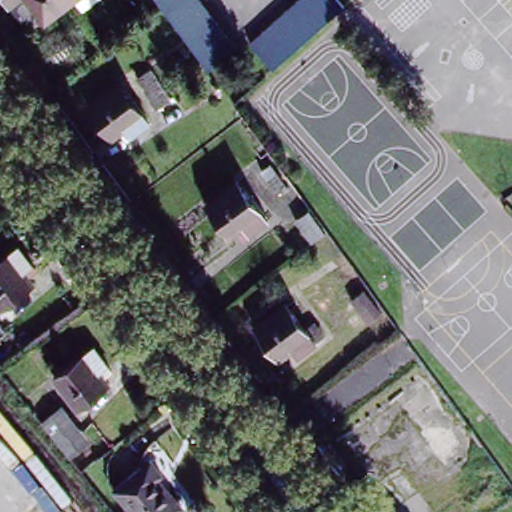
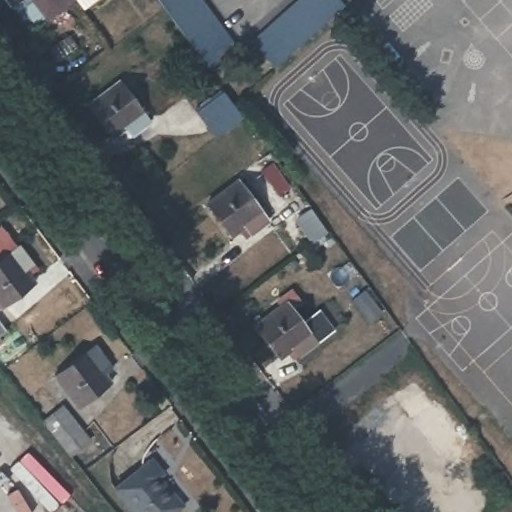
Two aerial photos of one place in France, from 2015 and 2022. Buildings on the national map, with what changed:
unchanged [(12,3),(10,0),(66,0),(49,13),(32,27),(12,3)]
unchanged [(86,7),(80,0),(94,0),(86,7)]
unchanged [(237,46),(209,69),(157,0),(202,0),(237,46)]
unchanged [(343,8),(275,69),(251,43),(298,0),(337,0),(343,8)]
unchanged [(80,49),(57,64),(48,50),(71,35),(80,49)]
unchanged [(172,100),(158,109),(140,79),(154,71),(172,100)]
unchanged [(152,125),(127,143),(121,134),(114,139),(90,107),(122,84),(152,125)]
unchanged [(280,204),(263,181),(275,171),(292,195),(280,204)]
unchanged [(266,219),(241,237),(235,228),(227,234),(205,202),(236,178),(267,219),(266,219)]
unchanged [(311,218),(324,236),(311,246),(297,228),(311,218)]
unchanged [(5,304),(0,298),(0,260),(21,246),(37,268),(29,274),(35,282),(5,304)]
unchanged [(385,315),(372,325),(354,301),(367,291),(385,315)]
unchanged [(296,353),(290,345),(274,357),(251,326),(282,302),(303,330),(309,325),(317,336),(296,353)]
unchanged [(7,328),(0,334),(0,318),(7,328)]
unchanged [(54,373),(93,345),(110,369),(102,375),(107,382),(77,404),(54,373)]
unchanged [(86,449),(73,460),(66,451),(65,450),(43,423),(64,406),(84,431),(94,443),(86,449)]
unchanged [(150,466),(148,464),(147,459),(149,455),(151,453),(157,460),(167,473),(162,476),(185,505),(176,512),(137,512),(119,490),(150,466)]

